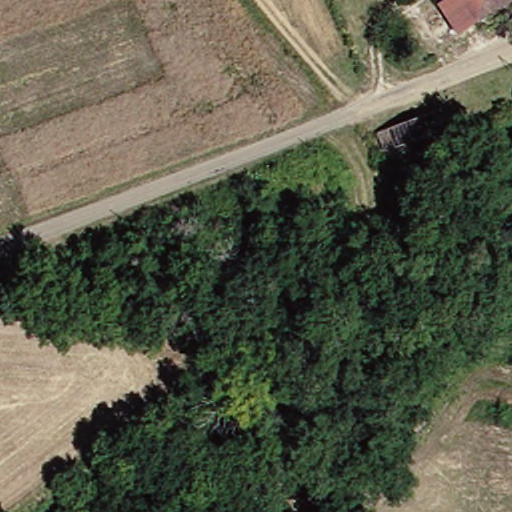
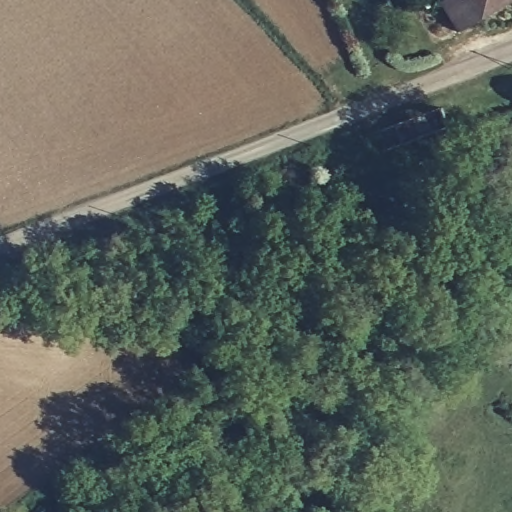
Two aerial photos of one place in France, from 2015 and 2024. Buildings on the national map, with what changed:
unchanged [(413,19),(442,0),(505,0),(436,47),(413,19)]

